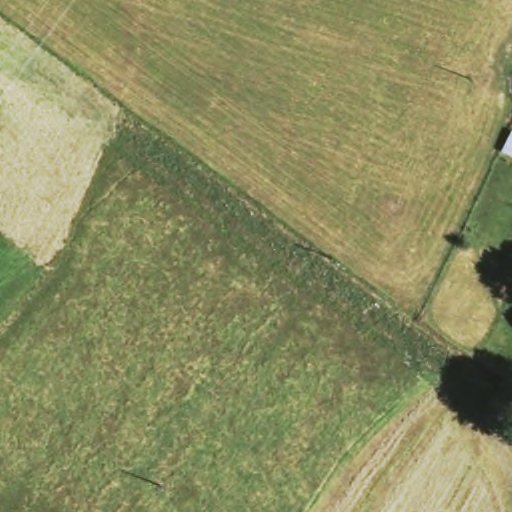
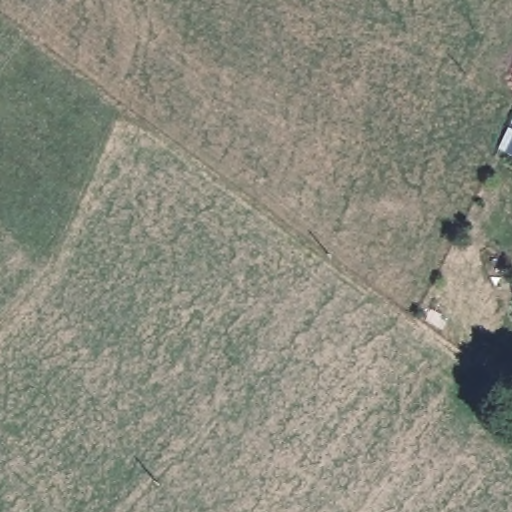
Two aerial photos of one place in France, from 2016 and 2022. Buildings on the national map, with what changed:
unchanged [(512,323),(498,316),(512,291),(512,323)]

